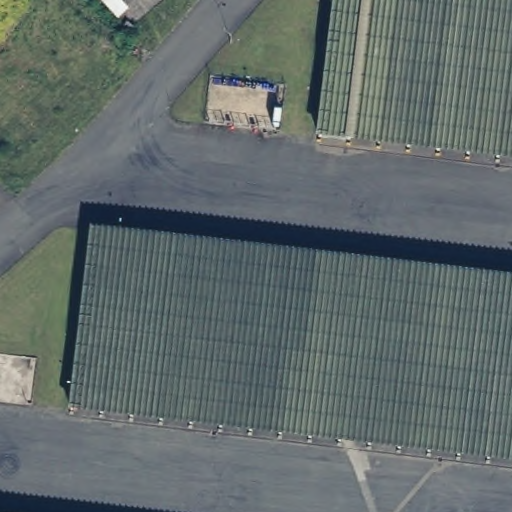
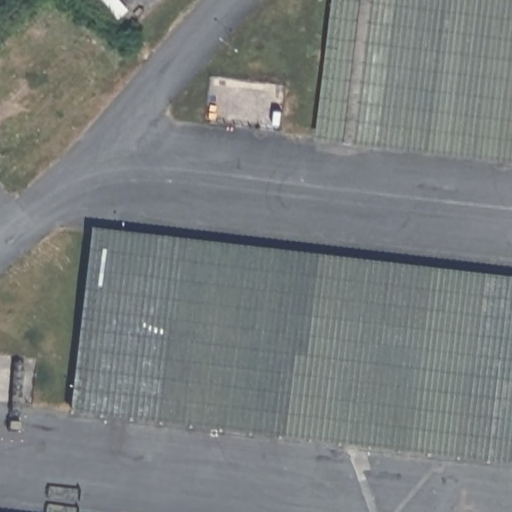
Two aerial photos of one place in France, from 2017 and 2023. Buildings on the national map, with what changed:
unchanged [(132,9),(115,22),(95,0),(124,0),(132,9)]
unchanged [(314,142),(332,0),(512,0),(512,162),(314,142)]
unchanged [(512,276),(512,464),(67,412),(91,225),(512,276)]

